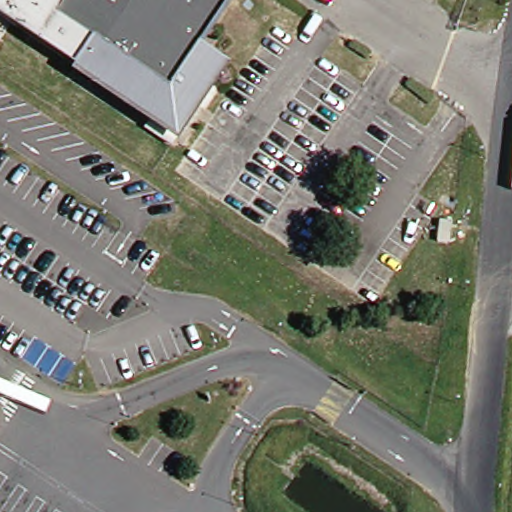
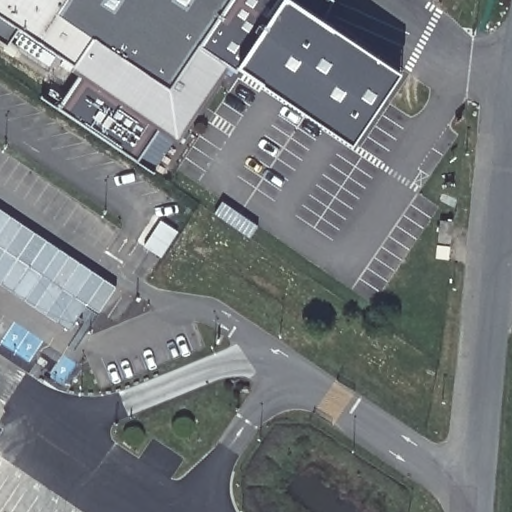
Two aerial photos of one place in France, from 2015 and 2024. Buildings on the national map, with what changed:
unchanged [(17,31),(0,20),(0,0),(235,0),(201,50),(227,67),(179,140),(35,44),(17,31)]
new [(240,65),(234,72),(227,67),(201,50),(235,0),(282,0),(240,65)]
new [(240,65),(282,0),(297,0),(321,16),(402,71),(355,142),(240,65)]
new [(321,16),(297,0),(334,0),(321,16)]
new [(161,127),(139,161),(59,108),(81,74),(161,127)]

